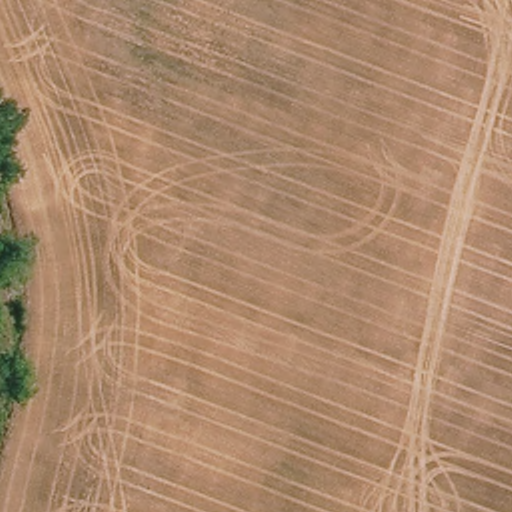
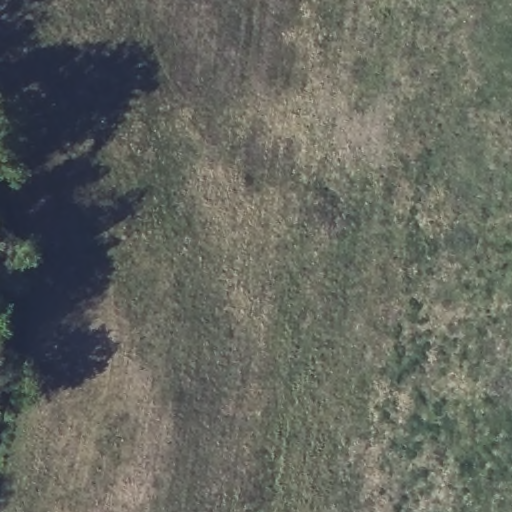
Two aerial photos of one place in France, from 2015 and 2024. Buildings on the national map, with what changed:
[]

